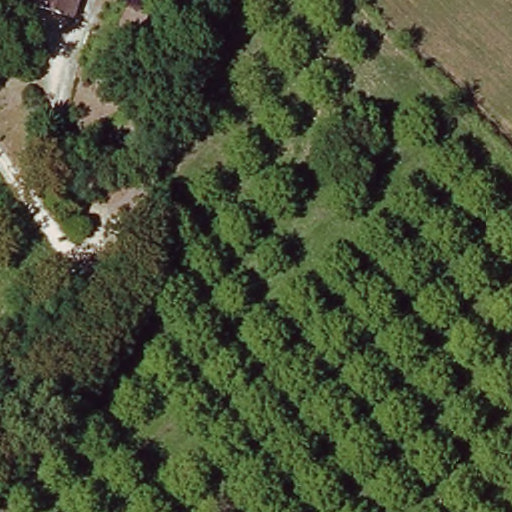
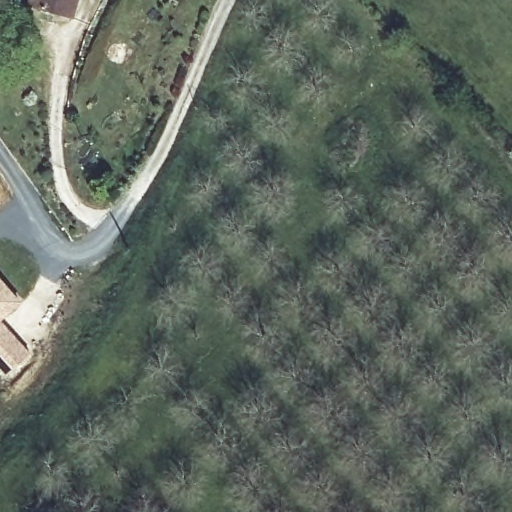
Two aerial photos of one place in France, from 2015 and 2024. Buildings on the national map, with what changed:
unchanged [(38,0),(82,0),(71,34),(31,22),(38,0)]
new [(0,317),(0,282),(17,302),(0,317)]
new [(0,327),(17,345),(27,356),(4,375),(0,371),(0,327)]

